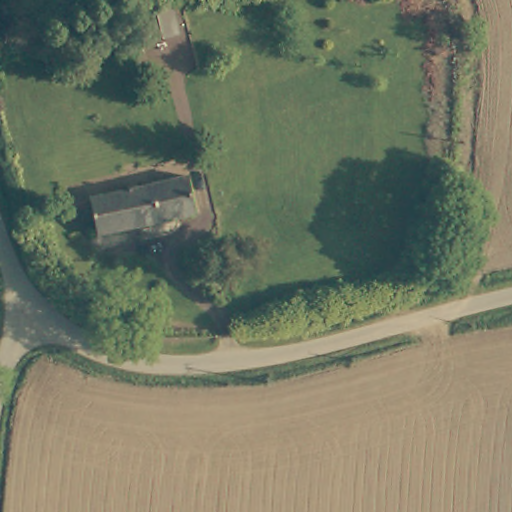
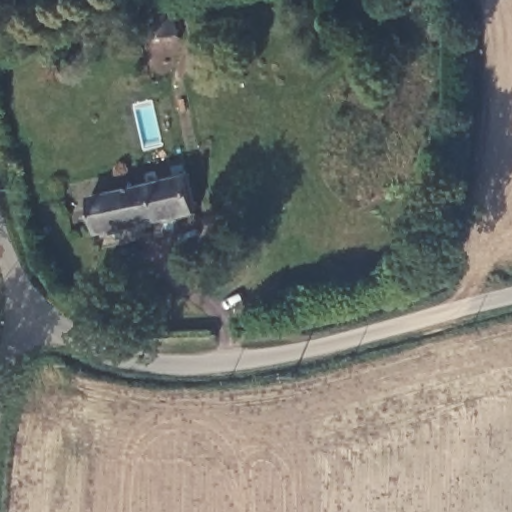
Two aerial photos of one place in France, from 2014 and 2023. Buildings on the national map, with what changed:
unchanged [(165,0),(172,32),(141,41),(130,0),(165,0)]
unchanged [(197,208),(101,235),(92,202),(188,175),(197,208)]

